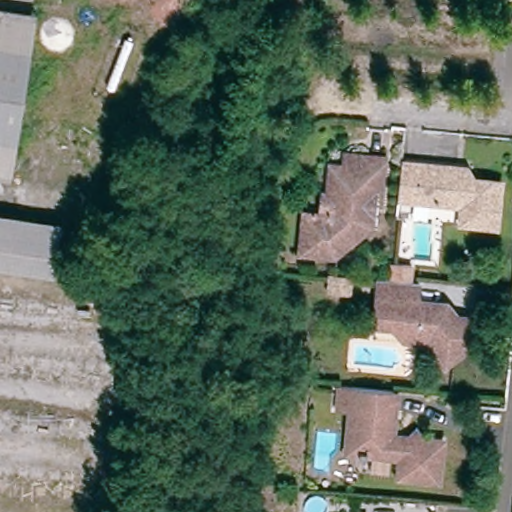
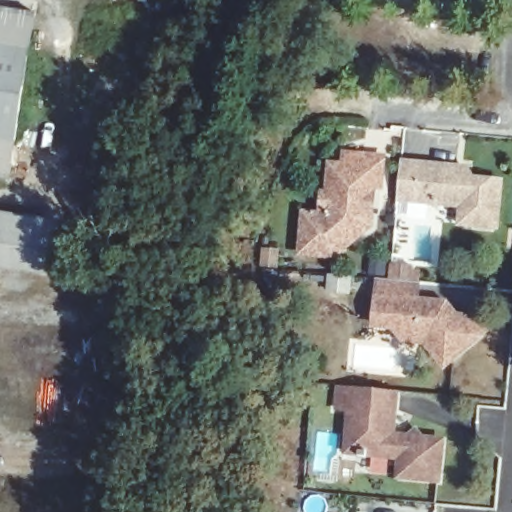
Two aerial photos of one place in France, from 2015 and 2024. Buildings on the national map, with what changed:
unchanged [(31,19),(11,149),(0,147),(0,14),(31,19)]
unchanged [(11,149),(5,186),(0,185),(0,147),(11,149)]
unchanged [(323,194),(328,194),(330,178),(330,165),(344,166),(345,154),(383,158),(380,189),(375,188),(370,227),(333,257),(300,254),(304,214),(321,215),(323,194)]
unchanged [(470,179),(469,189),(502,192),(497,237),(462,234),(463,216),(430,212),(415,211),(415,208),(400,207),(403,172),(453,177),(470,179)]
unchanged [(61,219),(53,271),(0,263),(0,209),(61,219)]
unchanged [(398,271),(414,272),(412,283),(397,282),(398,271)]
unchanged [(351,290),(330,288),(331,277),(352,278),(351,290)]
unchanged [(410,332),(381,330),(385,284),(396,285),(425,287),(423,306),(452,309),(470,331),(480,322),(491,337),(482,345),(451,371),(432,347),(409,345),(410,332)]
unchanged [(390,441),(400,442),(405,442),(406,435),(421,437),(420,443),(440,446),(436,486),(396,482),(398,462),(343,457),(348,414),(342,413),(332,412),(335,391),(345,392),(394,396),(390,441)]

